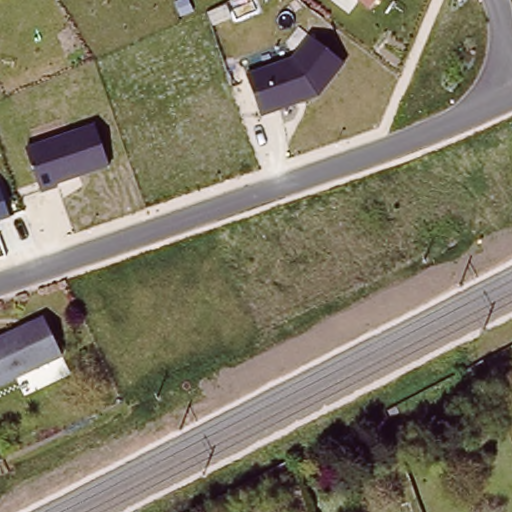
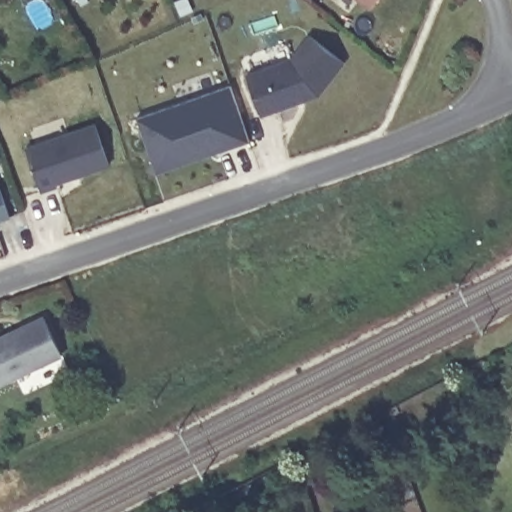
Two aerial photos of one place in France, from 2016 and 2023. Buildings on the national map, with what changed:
unchanged [(372,8),(360,0),(378,0),(372,8)]
unchanged [(345,58),(322,94),(261,112),(251,72),(294,60),(309,37),(345,58)]
new [(154,168),(137,119),(231,85),(251,141),(226,150),(156,174),(154,168)]
unchanged [(93,124),(109,166),(55,185),(57,188),(42,193),(26,149),(93,124)]
unchanged [(9,216),(0,219),(0,189),(9,216)]
unchanged [(12,330),(13,333),(21,330),(23,325),(38,318),(56,356),(0,383),(0,336),(12,330)]

